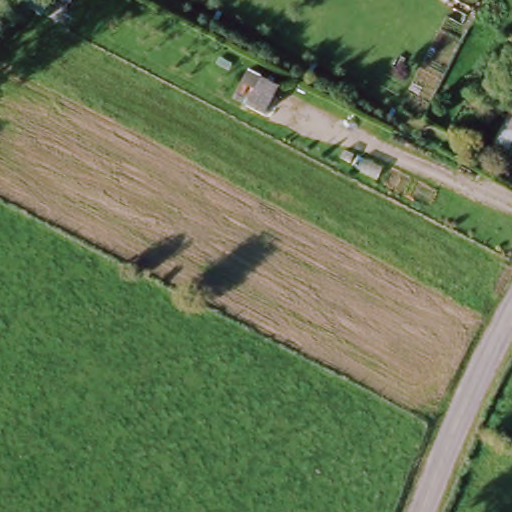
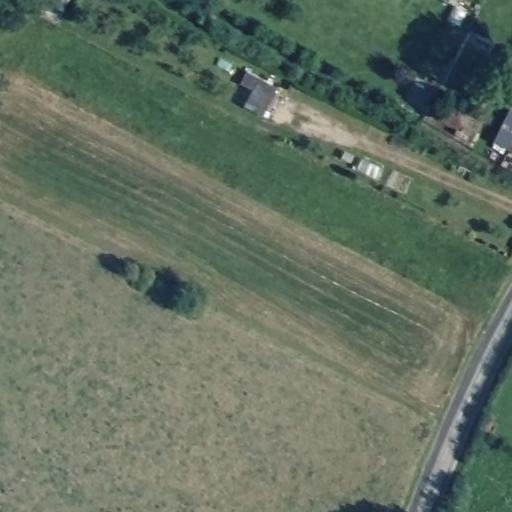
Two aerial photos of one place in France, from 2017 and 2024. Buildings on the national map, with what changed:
unchanged [(227,63),(232,66),(230,72),(224,69),(227,63)]
unchanged [(247,110),(255,93),(244,87),(250,76),(278,90),(263,119),(247,110)]
unchanged [(496,145),(512,115),(512,150),(510,152),(496,145)]

